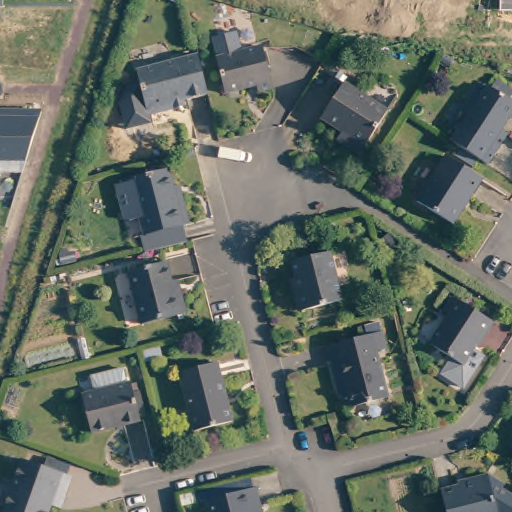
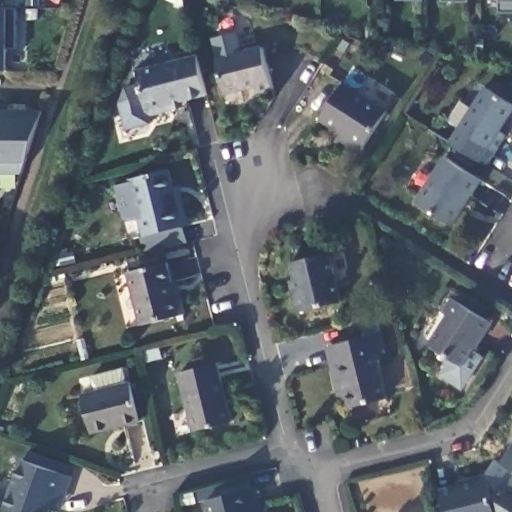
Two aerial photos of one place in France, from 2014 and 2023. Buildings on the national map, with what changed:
unchanged [(0,9),(0,0),(2,0),(2,9),(0,9)]
unchanged [(512,12),(499,12),(500,0),(512,0),(512,12)]
new [(15,50),(8,50),(8,70),(0,70),(0,9),(2,9),(18,8),(15,50)]
unchanged [(259,47),(270,86),(256,90),(254,82),(226,90),(217,59),(259,47)]
unchanged [(172,97),(173,102),(150,109),(137,64),(196,49),(206,87),(172,97)]
unchanged [(493,75),(511,86),(505,96),(512,101),(512,103),(499,123),(507,128),(494,150),(457,126),(484,83),(487,85),(493,75)]
unchanged [(336,131),(341,124),(321,111),(344,76),(386,104),(363,139),(358,146),(336,131)]
unchanged [(43,110),(24,175),(0,174),(0,109),(43,110)]
unchanged [(445,155),(480,176),(452,221),(417,199),(445,155)]
unchanged [(185,217),(176,220),(140,229),(127,177),(163,168),(167,185),(176,183),(185,217)]
unchanged [(328,249),(341,298),(297,309),(292,288),(296,287),(288,259),(328,249)]
unchanged [(163,261),(170,290),(180,287),(186,310),(141,321),(128,270),(163,261)]
unchanged [(433,342),(452,312),(445,307),(453,293),(494,318),(486,332),(481,330),(463,360),(433,342)]
unchanged [(340,384),(329,345),(382,330),(386,347),(379,349),(392,395),(354,406),(350,392),(343,395),(340,384)]
unchanged [(216,360),(231,418),(196,427),(181,368),(216,360)]
unchanged [(142,424),(93,436),(84,400),(97,396),(94,381),(125,374),(129,389),(133,388),(142,424)]
unchanged [(512,452),(509,450),(512,445),(512,452)]
unchanged [(46,505),(44,512),(15,512),(6,509),(23,460),(44,468),(47,461),(64,467),(61,474),(68,476),(62,494),(57,506),(51,504),(46,505)]
unchanged [(465,482),(489,475),(503,485),(506,491),(512,494),(512,510),(511,512),(446,512),(438,483),(462,477),(465,482)]
unchanged [(200,503),(198,495),(219,489),(249,481),(251,491),(254,490),(259,512),(209,512),(206,501),(200,503)]

